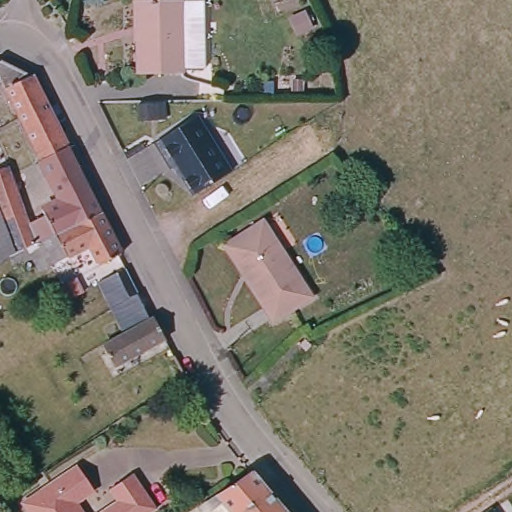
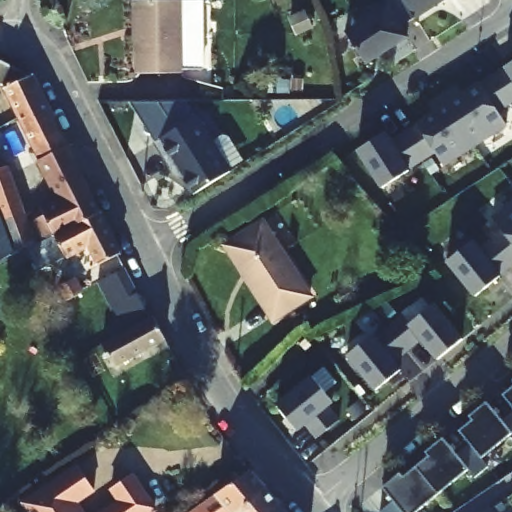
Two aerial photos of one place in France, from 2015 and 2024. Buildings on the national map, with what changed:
unchanged [(131,0),(194,0),(195,71),(175,71),(132,72),(131,0)]
new [(403,0),(444,0),(415,19),(403,0)]
new [(380,53),(381,55),(365,64),(345,34),(387,6),(407,36),(380,53)]
unchanged [(35,72),(70,144),(48,156),(45,156),(0,65),(0,57),(4,56),(35,72)]
new [(512,63),(512,103),(511,104),(492,76),(512,63)]
new [(457,86),(462,94),(492,76),(511,104),(498,112),(507,125),(475,146),(442,96),(457,86)]
new [(433,113),(428,104),(442,96),(475,146),(443,166),(435,153),(422,161),(403,132),(433,113)]
unchanged [(196,191),(177,162),(173,165),(157,139),(197,113),(232,167),(196,191)]
new [(385,133),(390,141),(403,132),(422,161),(382,188),(357,150),(385,133)]
unchanged [(0,196),(0,166),(10,163),(32,220),(48,211),(46,206),(65,196),(45,156),(48,156),(70,144),(82,168),(103,209),(94,213),(93,214),(83,219),(56,233),(53,234),(43,239),(40,241),(40,238),(25,246),(20,249),(19,248),(0,258),(0,196)]
new [(512,202),(512,242),(492,219),(512,202)]
unchanged [(40,238),(40,241),(43,239),(53,234),(56,233),(83,219),(93,214),(94,213),(103,209),(108,219),(124,249),(102,260),(92,241),(51,263),(47,255),(38,260),(35,255),(30,257),(25,246),(40,238)]
unchanged [(307,296),(275,318),(245,271),(242,273),(225,245),(259,222),(307,296)]
new [(472,241),(500,276),(475,297),(447,262),(472,241)]
unchanged [(152,316),(164,341),(112,369),(100,345),(120,335),(108,311),(95,283),(123,270),(135,295),(147,318),(152,316)]
unchanged [(80,294),(65,301),(58,287),(73,279),(80,294)]
new [(402,315),(410,324),(434,304),(462,340),(437,359),(422,340),(407,351),(387,326),(402,315)]
new [(372,335),(374,337),(387,326),(407,351),(394,362),(400,370),(376,390),(347,355),(372,335)]
new [(313,377),(333,402),(328,406),(340,420),(317,439),(305,424),(297,430),(277,405),(313,377)]
new [(503,395),(512,387),(512,406),(503,395)]
new [(459,431),(472,420),(469,416),(487,402),(502,421),(512,413),(512,434),(482,458),(470,444),(459,431)]
new [(488,467),(475,478),(468,470),(438,495),(416,467),(429,456),(425,452),(443,438),(457,455),(470,444),(482,459),(488,467)]
unchanged [(88,490),(70,502),(77,512),(26,512),(25,510),(18,502),(31,493),(73,465),(88,490)]
new [(438,495),(417,512),(380,512),(393,501),(382,488),(400,473),(403,477),(416,467),(438,495)]
unchanged [(209,510),(206,512),(190,512),(255,468),(270,485),(237,512),(211,512),(209,510)]
unchanged [(115,500),(106,488),(127,474),(149,508),(143,512),(97,512),(115,500)]
unchanged [(269,512),(237,512),(270,485),(283,500),(269,512)]
unchanged [(283,500),(294,512),(269,512),(283,500)]
unchanged [(488,505),(493,512),(478,512),(488,505)]
new [(209,510),(211,512),(206,512),(209,510)]

